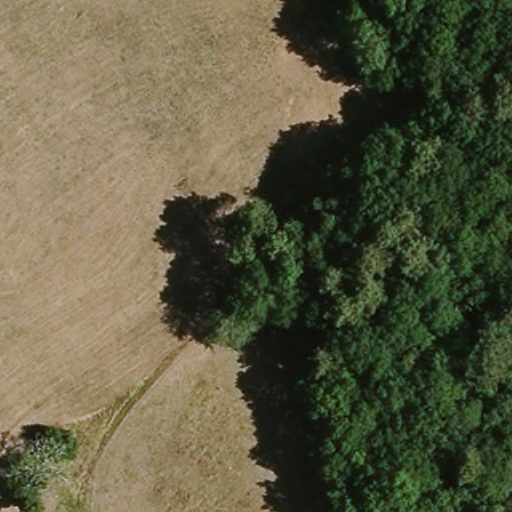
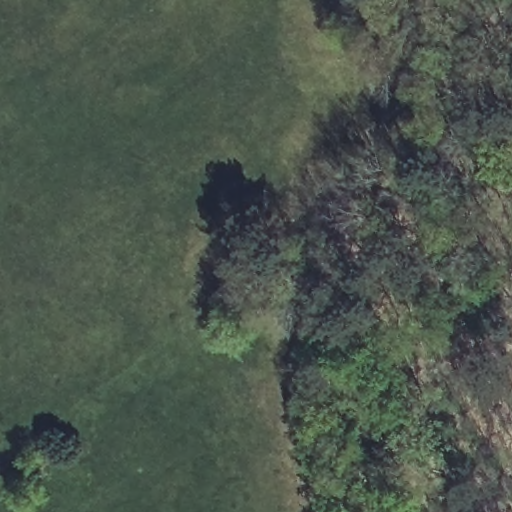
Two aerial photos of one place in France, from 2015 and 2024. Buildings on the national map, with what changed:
[]

